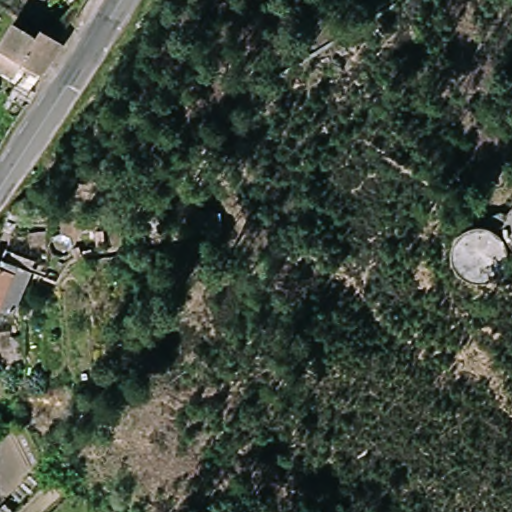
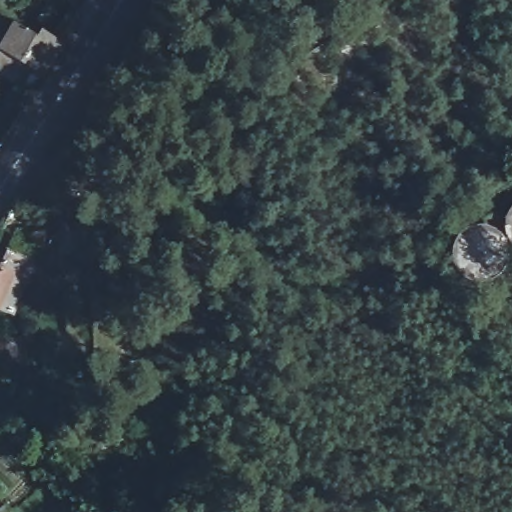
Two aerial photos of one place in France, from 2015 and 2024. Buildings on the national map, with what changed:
unchanged [(34,0),(62,0),(48,21),(29,9),(34,0)]
unchanged [(0,55),(18,26),(37,37),(41,29),(62,41),(42,75),(23,64),(15,77),(0,68),(0,55)]
unchanged [(3,312),(0,312),(0,263),(6,250),(27,258),(35,261),(23,294),(15,316),(10,315),(3,312)]
unchanged [(0,368),(0,335),(7,335),(11,366),(0,368)]

